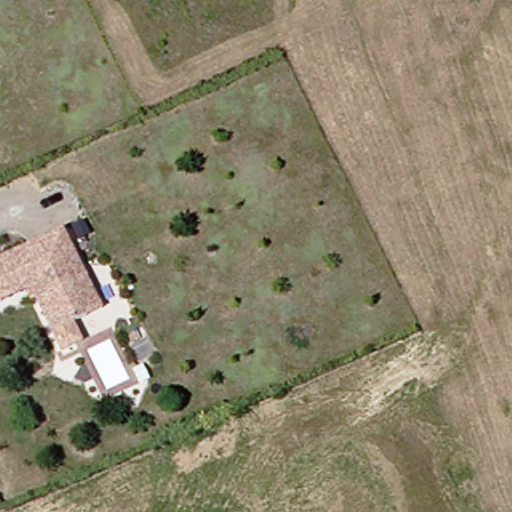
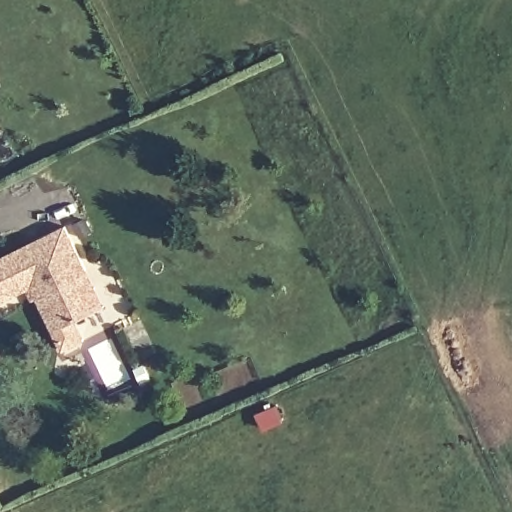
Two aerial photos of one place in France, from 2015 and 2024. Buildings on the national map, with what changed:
unchanged [(90,320),(77,325),(86,345),(64,355),(56,335),(35,290),(5,305),(0,294),(0,262),(69,230),(91,276),(109,311),(90,320)]

